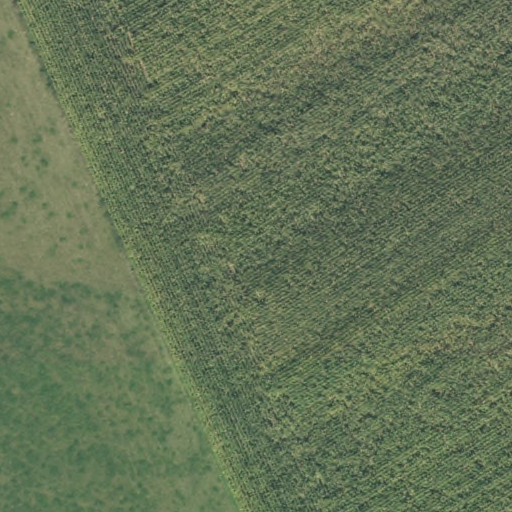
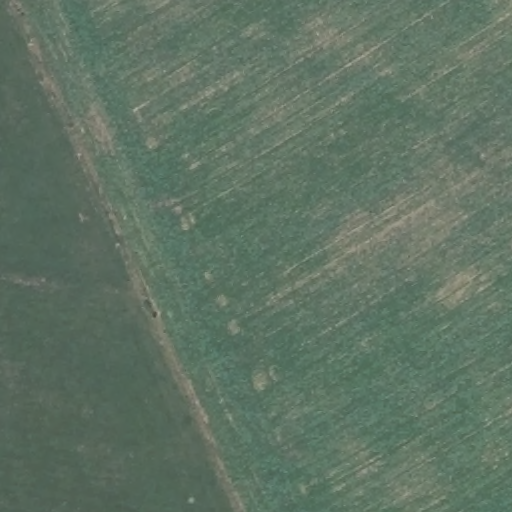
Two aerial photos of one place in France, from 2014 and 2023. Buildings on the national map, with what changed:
[]

